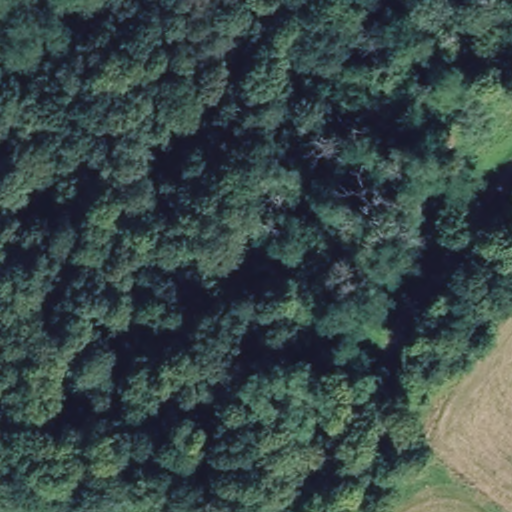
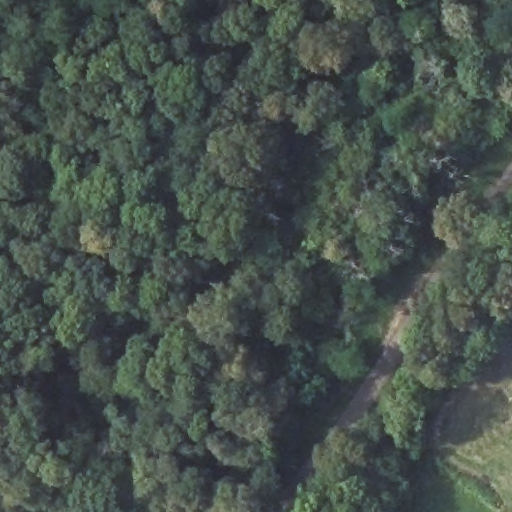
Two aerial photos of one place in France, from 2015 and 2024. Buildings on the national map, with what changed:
unchanged [(434,154),(436,121),(471,123),(467,152),(434,154)]

